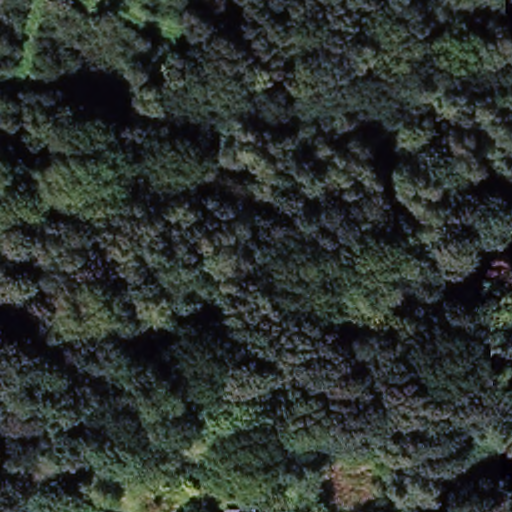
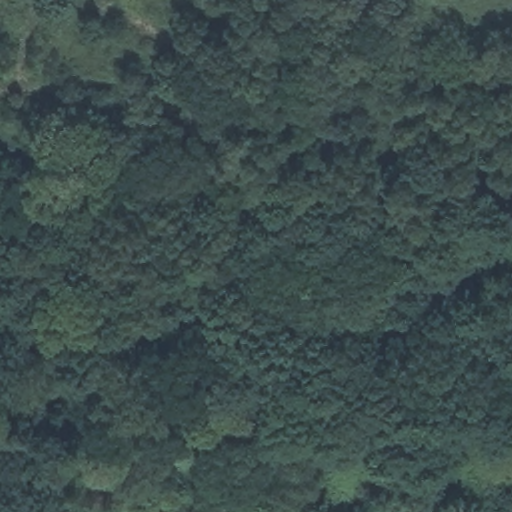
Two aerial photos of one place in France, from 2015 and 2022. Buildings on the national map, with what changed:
[]

